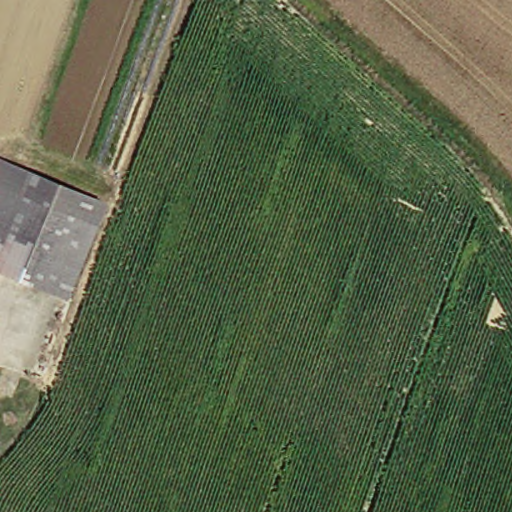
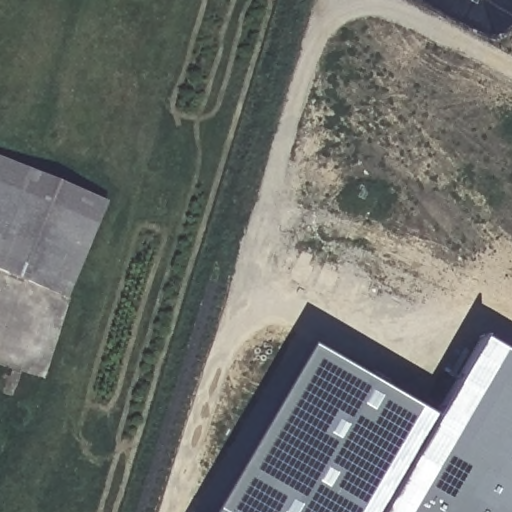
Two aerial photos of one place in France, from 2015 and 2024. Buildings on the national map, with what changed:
unchanged [(0,158),(35,172),(0,260),(0,158)]
unchanged [(110,201),(74,298),(0,269),(0,260),(35,172),(110,201)]
new [(310,346),(435,418),(481,339),(512,356),(512,512),(214,512),(310,346)]

